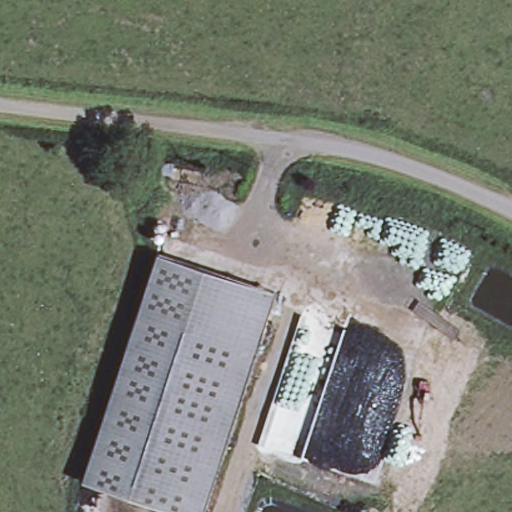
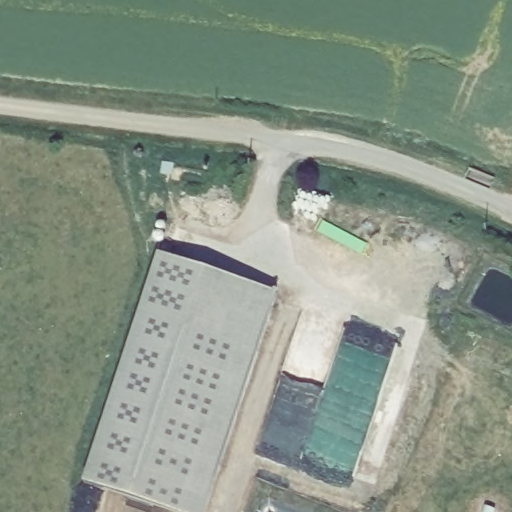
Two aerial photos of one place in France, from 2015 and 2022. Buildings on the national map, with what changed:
unchanged [(156,256),(248,288),(273,296),(200,512),(160,512),(79,484),(156,256)]

